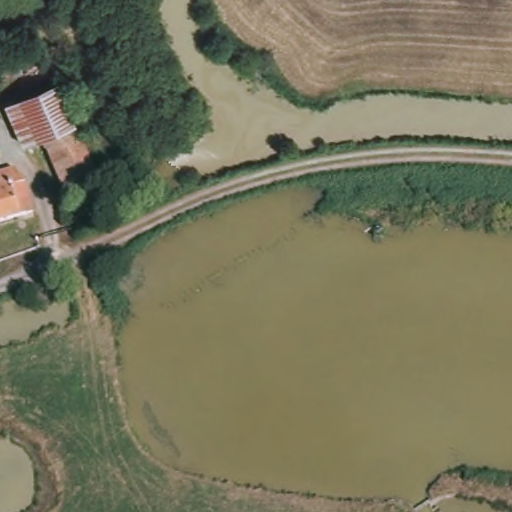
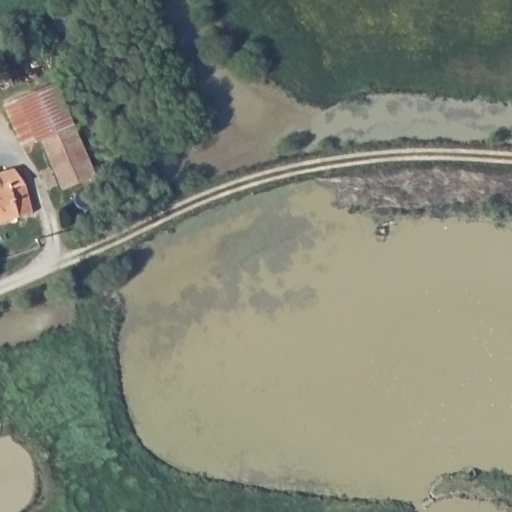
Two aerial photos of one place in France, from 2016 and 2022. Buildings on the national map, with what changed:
unchanged [(68,82),(98,170),(61,185),(41,140),(18,144),(3,107),(68,82)]
unchanged [(31,180),(39,212),(0,223),(0,173),(19,168),(31,180)]

